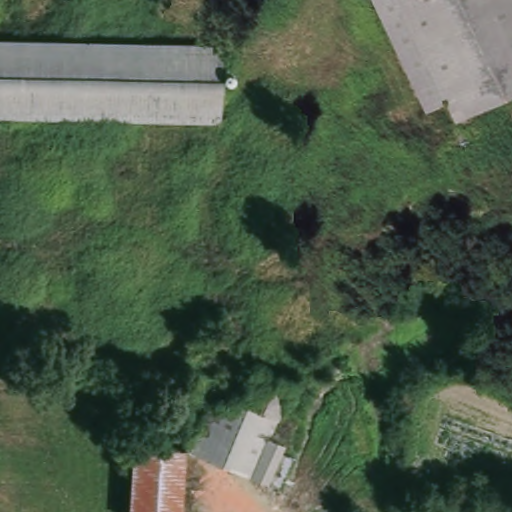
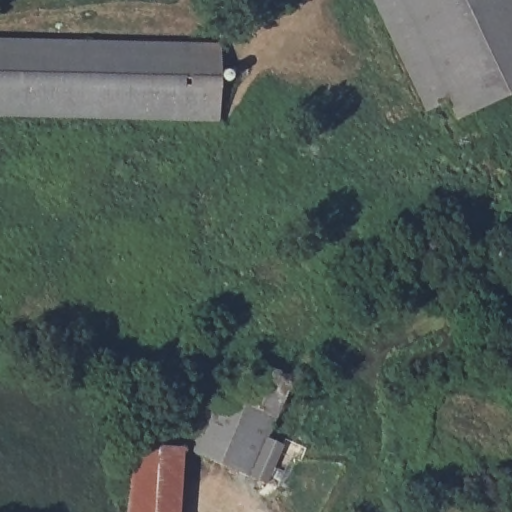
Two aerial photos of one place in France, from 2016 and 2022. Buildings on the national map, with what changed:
unchanged [(457,115),(448,97),(425,108),(372,0),(512,0),(512,90),(457,115)]
unchanged [(216,67),(216,70),(229,70),(229,85),(216,84),(215,90),(216,124),(0,118),(0,39),(216,45),(216,67)]
unchanged [(270,447),(283,453),(268,490),(185,452),(205,407),(223,415),(232,393),(249,401),(251,397),(258,381),(290,395),(266,446),(270,447)]
unchanged [(176,512),(126,512),(128,446),(178,448),(176,512)]

